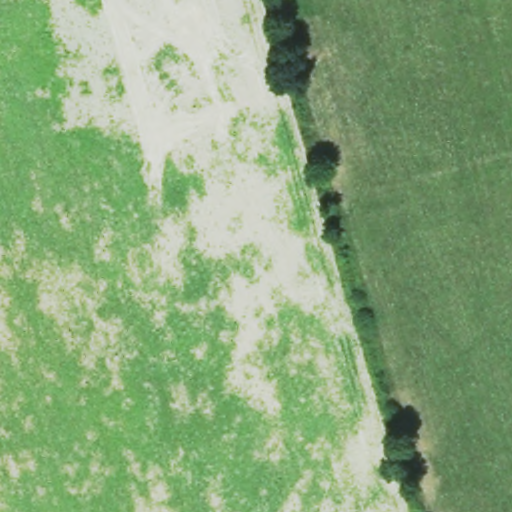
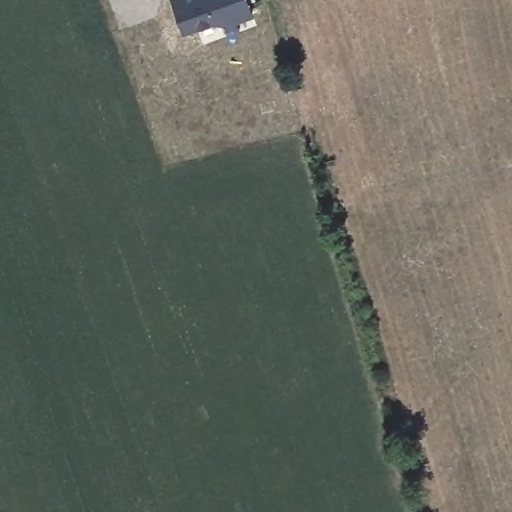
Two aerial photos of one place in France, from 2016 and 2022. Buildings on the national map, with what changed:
new [(257,15),(232,24),(217,21),(188,32),(177,0),(251,0),(257,15)]

